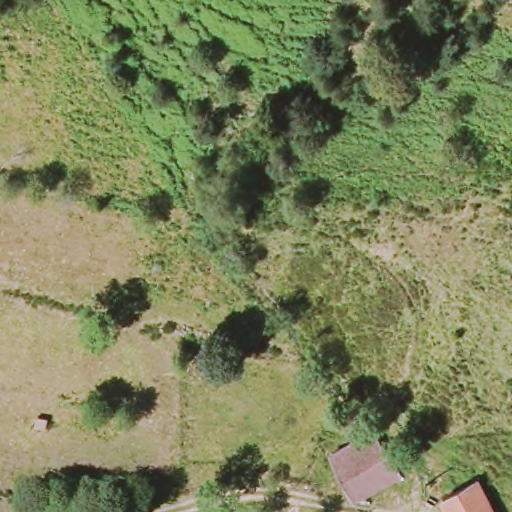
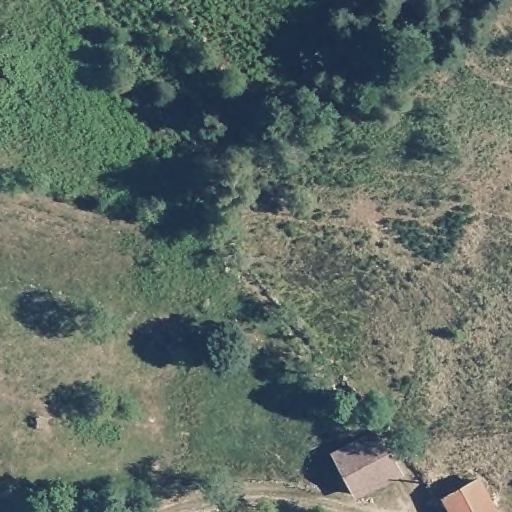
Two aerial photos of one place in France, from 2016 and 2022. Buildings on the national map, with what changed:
unchanged [(326,455),(368,432),(394,475),(349,496),(326,455)]
unchanged [(470,486),(483,512),(446,512),(441,501),(470,486)]

